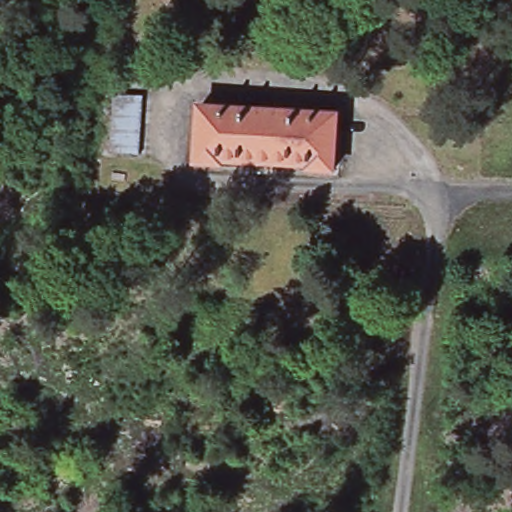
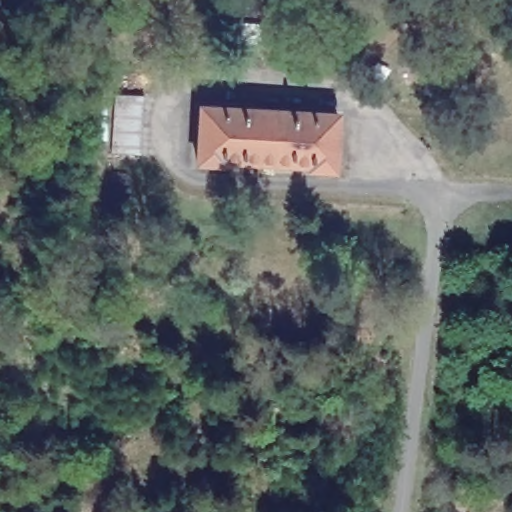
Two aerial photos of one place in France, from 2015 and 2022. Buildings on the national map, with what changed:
unchanged [(343,107),(335,178),(190,163),(198,94),(343,107)]
unchanged [(140,156),(108,155),(110,95),(141,96),(140,156)]

